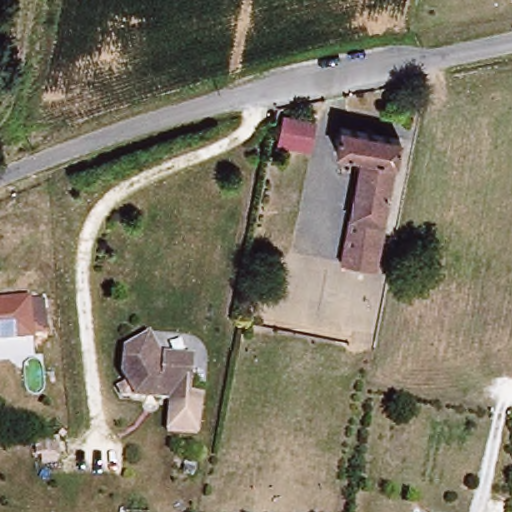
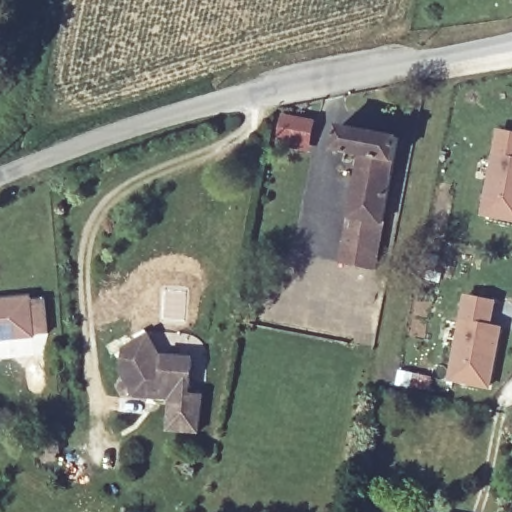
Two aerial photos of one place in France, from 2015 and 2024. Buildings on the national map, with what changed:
unchanged [(380,269),(346,264),(365,154),(340,149),(345,121),(400,130),(383,220),(388,224),(380,269)]
new [(497,129),(512,132),(512,222),(481,215),(497,129)]
unchanged [(287,134),(318,140),(312,167),(282,161),(287,134)]
unchanged [(34,294),(37,335),(0,339),(0,297),(34,294)]
new [(496,302),(492,326),(502,327),(491,389),(448,382),(465,295),(496,302)]
unchanged [(153,382),(145,397),(141,396),(125,374),(130,348),(155,333),(174,357),(197,357),(195,401),(154,398),(157,383),(153,382)]
unchanged [(195,401),(195,393),(205,393),(202,434),(165,430),(169,399),(195,401)]

